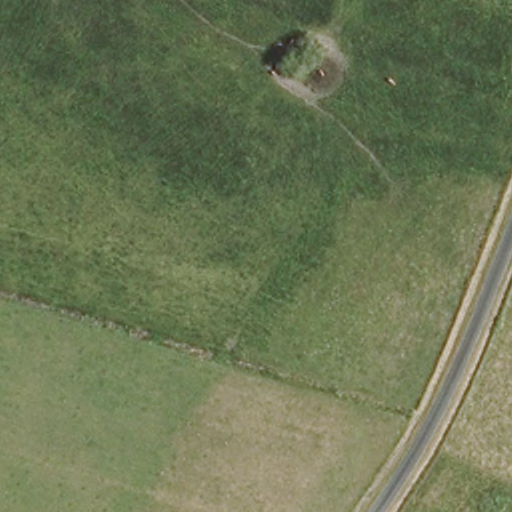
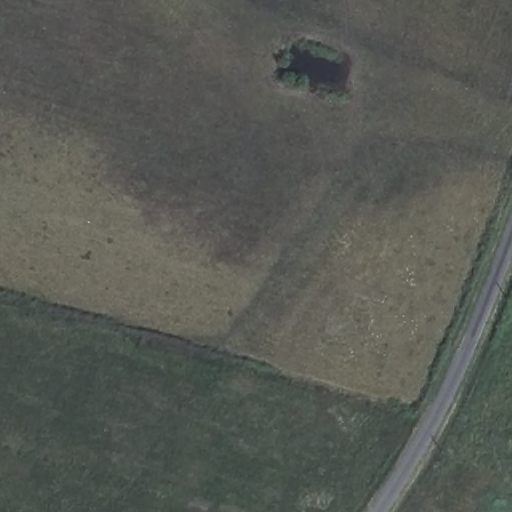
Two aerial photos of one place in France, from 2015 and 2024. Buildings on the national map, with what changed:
[]

